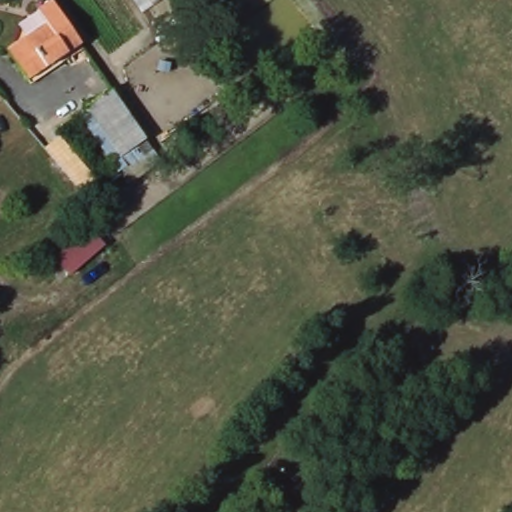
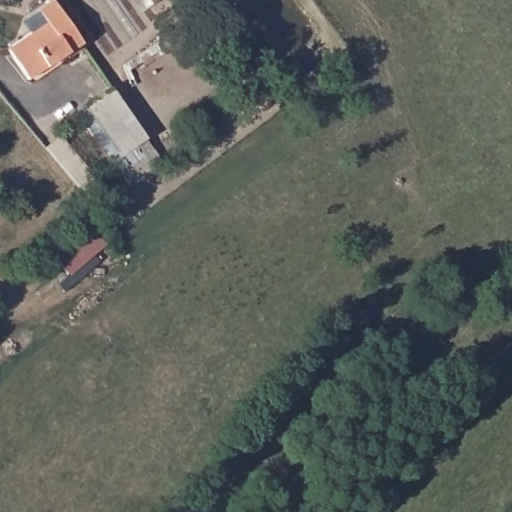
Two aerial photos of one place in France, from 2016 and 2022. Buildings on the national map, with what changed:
unchanged [(33,80),(13,49),(50,25),(41,11),(56,1),(78,33),(86,45),(33,80)]
unchanged [(125,105),(151,143),(125,161),(90,110),(117,92),(125,105)]
unchanged [(103,244),(68,274),(52,255),(87,226),(103,244)]

